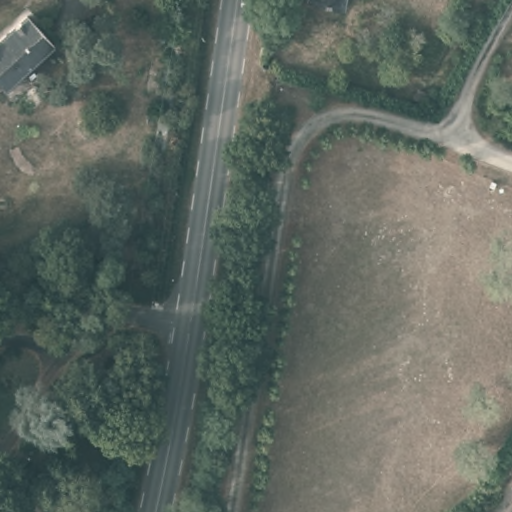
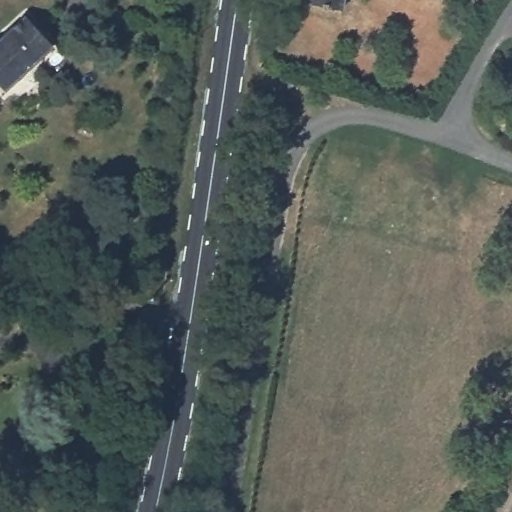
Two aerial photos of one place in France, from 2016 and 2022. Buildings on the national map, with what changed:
unchanged [(345,7),(306,2),(306,0),(346,0),(345,7)]
unchanged [(0,80),(0,39),(24,14),(52,40),(20,75),(8,87),(0,80)]

